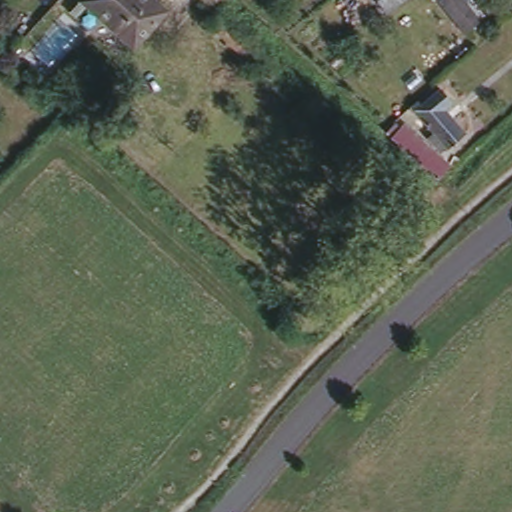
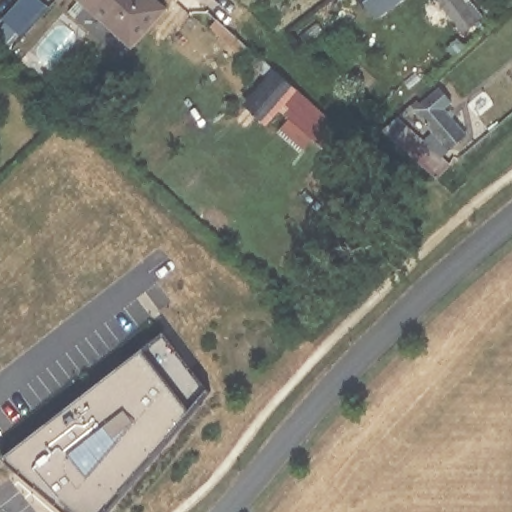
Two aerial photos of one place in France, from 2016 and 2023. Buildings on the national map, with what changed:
new [(41,0),(50,9),(22,42),(0,23),(21,0),(41,0)]
unchanged [(131,47),(81,0),(155,0),(165,9),(131,47)]
unchanged [(377,0),(400,0),(385,11),(377,0)]
unchanged [(459,0),(479,26),(464,37),(439,7),(448,0),(459,0)]
unchanged [(237,55),(210,30),(218,22),(245,46),(237,55)]
unchanged [(417,101),(421,106),(440,90),(452,103),(444,110),(464,132),(447,148),(446,147),(442,152),(436,146),(434,147),(427,138),(432,134),(414,112),(417,110),(412,106),(417,101)]
unchanged [(389,131),(394,125),(399,130),(403,126),(446,166),(438,175),(389,131)]
new [(164,337),(206,393),(105,512),(67,512),(2,459),(164,337)]

